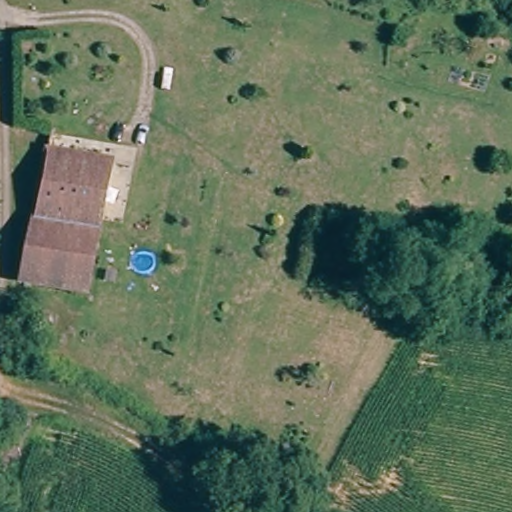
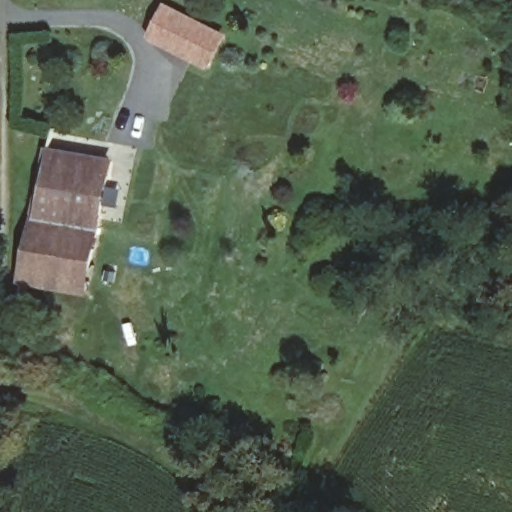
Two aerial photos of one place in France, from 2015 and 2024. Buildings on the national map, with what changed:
new [(163,1),(226,33),(207,71),(145,39),(163,1)]
unchanged [(77,287),(12,274),(38,145),(103,158),(77,287)]

